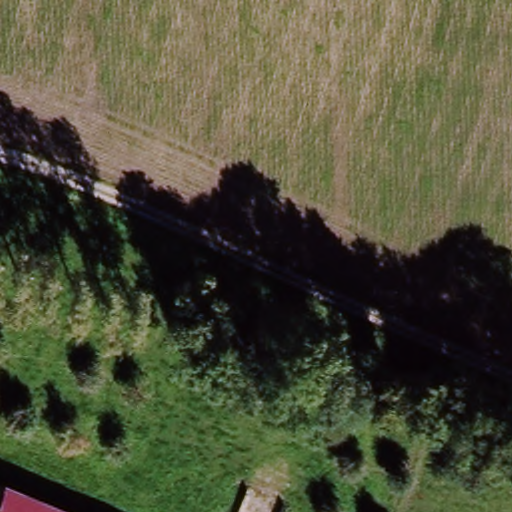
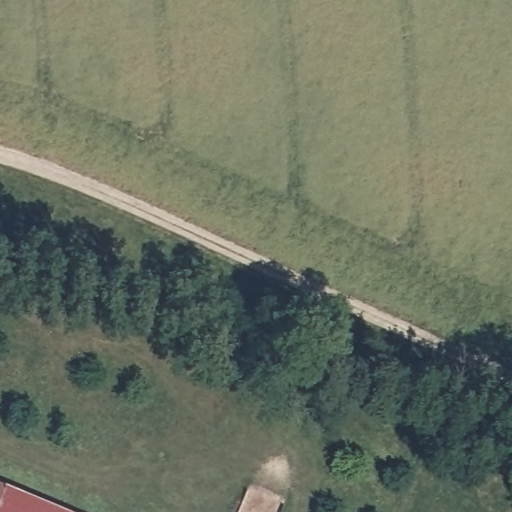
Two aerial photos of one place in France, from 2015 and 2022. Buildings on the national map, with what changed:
unchanged [(0,497),(0,483),(5,485),(0,497)]
unchanged [(0,497),(5,485),(68,512),(0,512),(0,497)]

